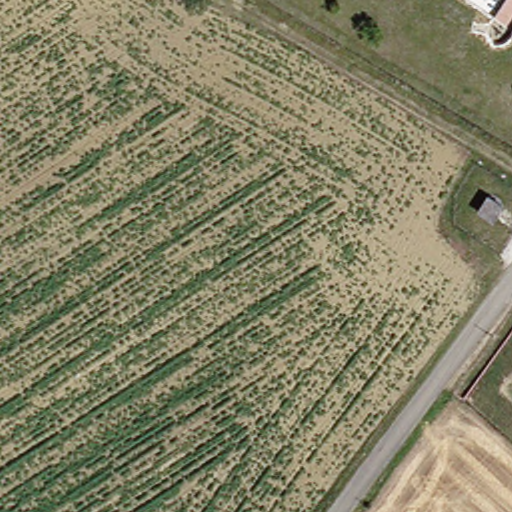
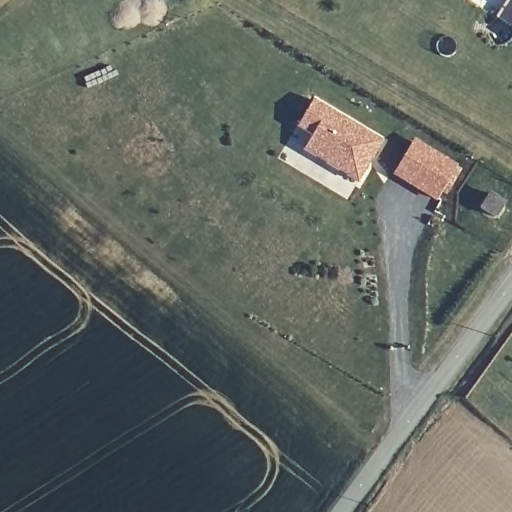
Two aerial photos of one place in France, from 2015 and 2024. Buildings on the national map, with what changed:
new [(360,181),(305,149),(313,134),(298,126),(313,100),(384,140),(374,155),(371,162),(360,181)]
new [(393,175),(414,139),(458,165),(437,201),(393,175)]
unchanged [(504,207),(494,222),(482,211),(491,198),(504,207)]

